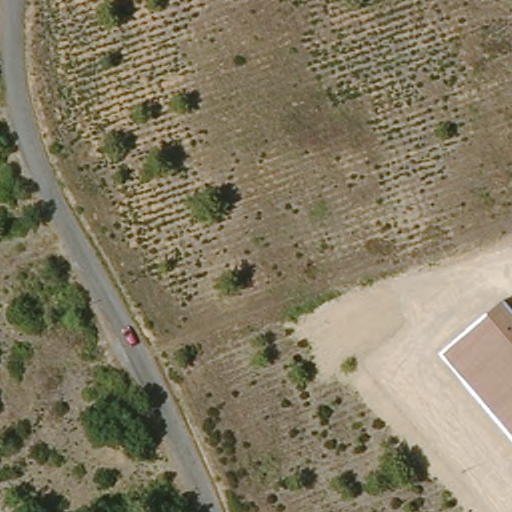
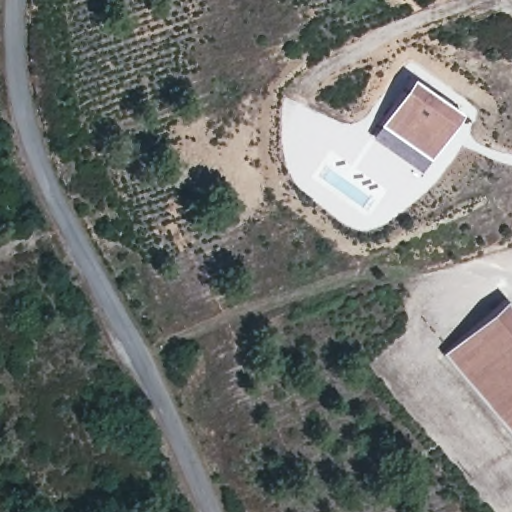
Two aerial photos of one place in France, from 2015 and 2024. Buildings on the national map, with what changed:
new [(413,77),(462,113),(430,159),(381,123),(413,77)]
unchanged [(512,307),(512,437),(440,352),(504,297),(512,307)]

